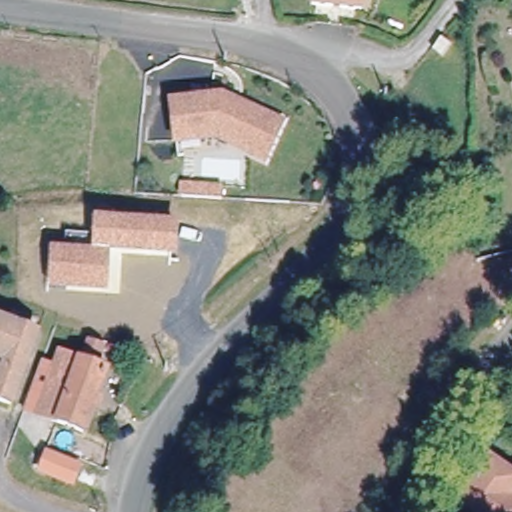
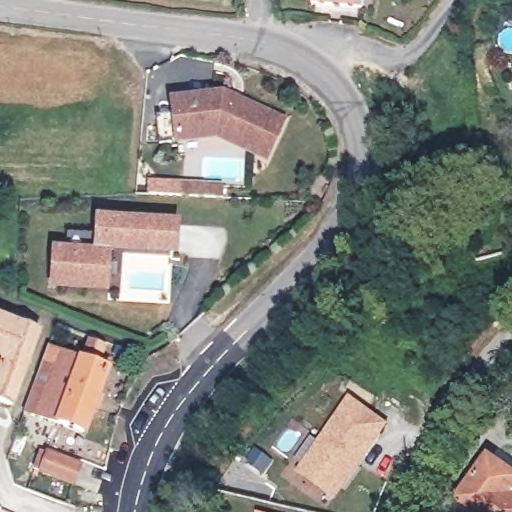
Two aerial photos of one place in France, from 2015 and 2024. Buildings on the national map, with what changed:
unchanged [(361,6),(313,2),(314,0),(362,0),(361,6)]
unchanged [(226,86),(286,113),(269,150),(220,127),(180,131),(176,91),(226,86)]
new [(180,188),(220,188),(220,201),(180,201),(180,188)]
unchanged [(92,234),(92,216),(176,221),(175,255),(109,253),(107,291),(48,290),(49,248),(65,248),(65,234),(92,234)]
unchanged [(5,353),(0,351),(0,317),(37,330),(12,403),(0,399),(0,368),(5,353)]
unchanged [(87,435),(43,419),(65,360),(85,367),(91,347),(107,352),(100,373),(109,376),(87,435)]
new [(390,422),(336,501),(296,473),(350,397),(390,422)]
unchanged [(43,471),(50,453),(81,465),(75,483),(43,471)]
unchanged [(512,512),(481,512),(458,495),(487,454),(512,472),(512,512)]

